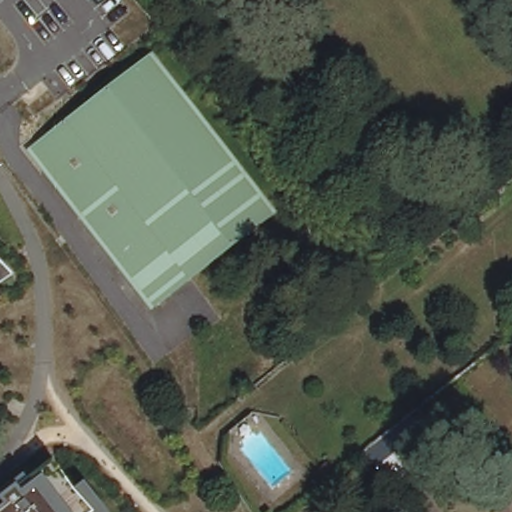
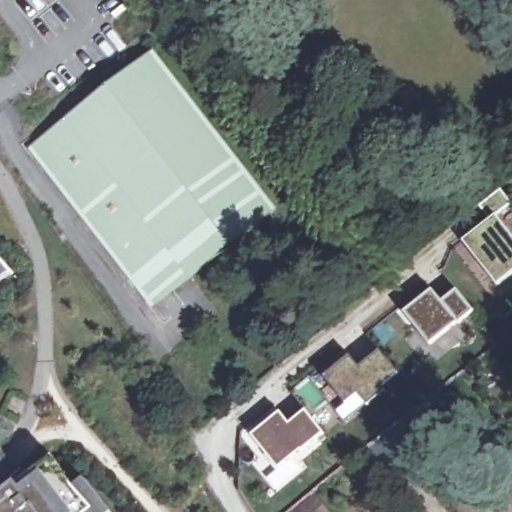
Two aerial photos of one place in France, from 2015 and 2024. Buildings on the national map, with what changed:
unchanged [(233,159),(274,212),(154,304),(30,144),(52,128),(112,81),(149,52),(233,159)]
new [(478,207),(499,190),(510,202),(495,215),(512,237),(512,274),(497,286),(462,242),(489,221),(478,207)]
unchanged [(0,284),(0,256),(14,273),(0,284)]
new [(432,290),(441,301),(455,290),(473,312),(430,346),(403,313),(432,290)]
new [(349,355),(359,367),(379,350),(403,378),(368,406),(358,394),(344,405),(321,378),(349,355)]
unchanged [(394,433),(431,404),(437,399),(461,428),(450,437),(419,463),(394,433)]
new [(279,412),(289,423),(305,411),(323,433),(279,470),(251,436),(279,412)]
unchanged [(0,512),(0,496),(50,457),(73,485),(84,477),(111,511),(111,512),(0,512)]
unchanged [(327,507),(330,512),(294,512),(319,492),(329,505),(327,507)]
unchanged [(293,512),(277,512),(286,504),(293,512)]

